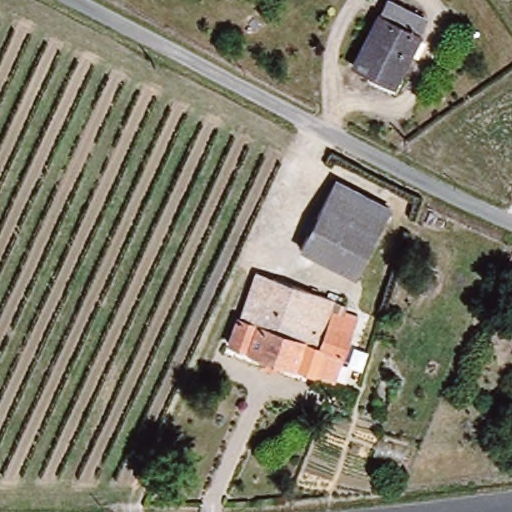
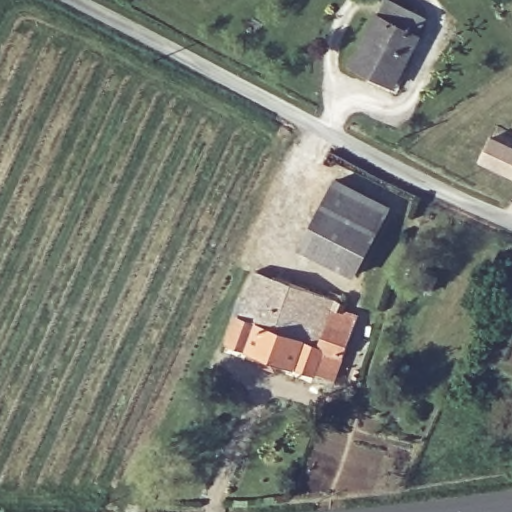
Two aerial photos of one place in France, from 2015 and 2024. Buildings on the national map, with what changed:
unchanged [(350,64),(380,1),(423,23),(392,85),(350,64)]
new [(507,146),(509,145),(512,147),(512,175),(479,161),(488,137),(507,146)]
unchanged [(299,251),(335,184),(384,210),(348,277),(299,251)]
unchanged [(306,371),(220,338),(230,311),(235,313),(251,272),(341,306),(338,312),(355,319),(340,360),(331,381),(306,371)]

